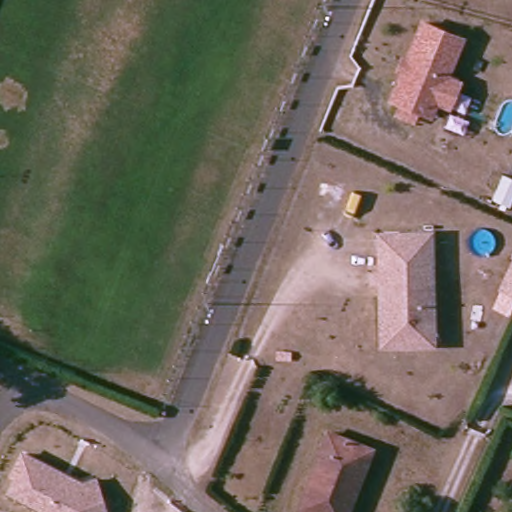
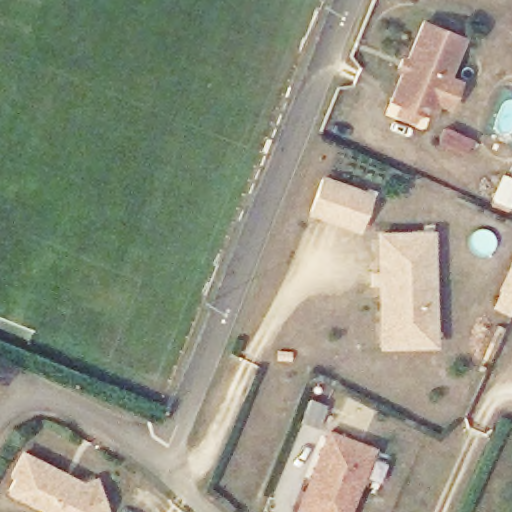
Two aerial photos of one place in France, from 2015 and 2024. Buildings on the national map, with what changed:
unchanged [(465,36),(451,75),(462,78),(450,111),(437,107),(432,120),(418,115),(414,125),(394,116),(397,106),(387,102),(398,74),(392,71),(399,54),(405,56),(418,19),(465,36)]
new [(496,158),(512,165),(512,172),(503,192),(485,185),(496,158)]
new [(374,194),(360,233),(306,215),(320,175),(374,194)]
unchanged [(382,350),(380,239),(413,239),(431,237),(433,285),(435,348),(382,350)]
unchanged [(510,315),(491,307),(512,256),(512,311),(510,315)]
unchanged [(297,503),(328,429),(374,450),(347,512),(317,512),(297,503)]
unchanged [(106,512),(42,512),(42,511),(4,495),(23,451),(81,482),(97,478),(106,512)]

